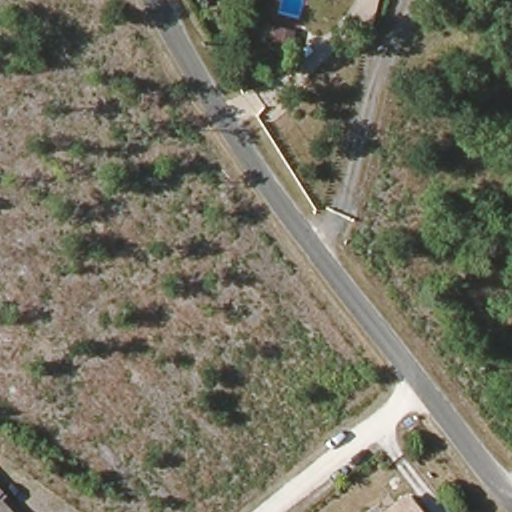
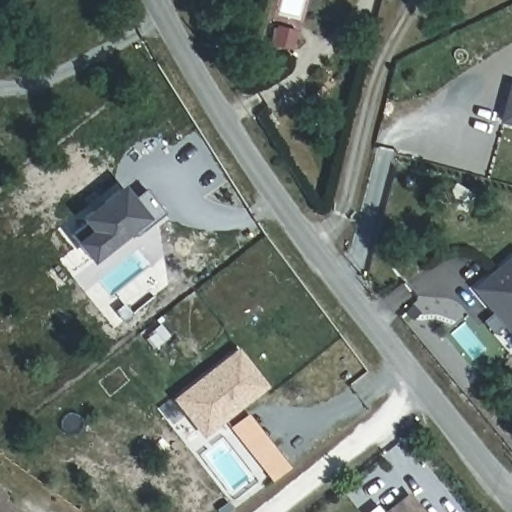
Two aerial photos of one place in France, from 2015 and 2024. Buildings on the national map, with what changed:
new [(509,83),(512,84),(512,127),(498,123),(509,83)]
new [(145,189),(164,214),(147,226),(144,221),(93,262),(88,255),(92,252),(81,238),(92,230),(81,216),(121,183),(132,199),(145,189)]
new [(472,288),(512,257),(512,332),(509,334),(472,288)]
new [(234,353),(260,388),(198,435),(172,399),(234,353)]
unchanged [(2,493),(0,495),(0,492),(2,493)]
unchanged [(11,512),(0,512),(0,500),(11,512)]
unchanged [(418,512),(396,512),(410,501),(411,503),(418,512)]

